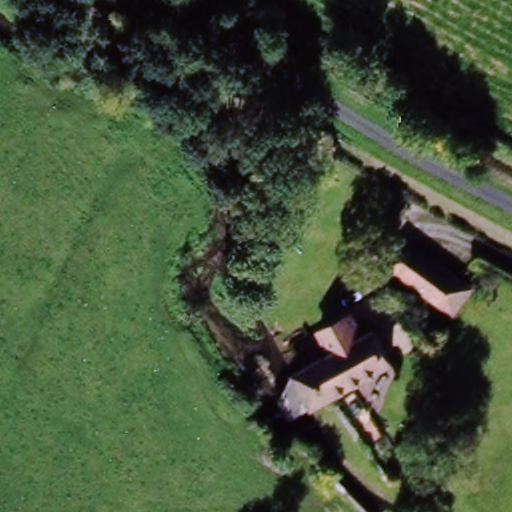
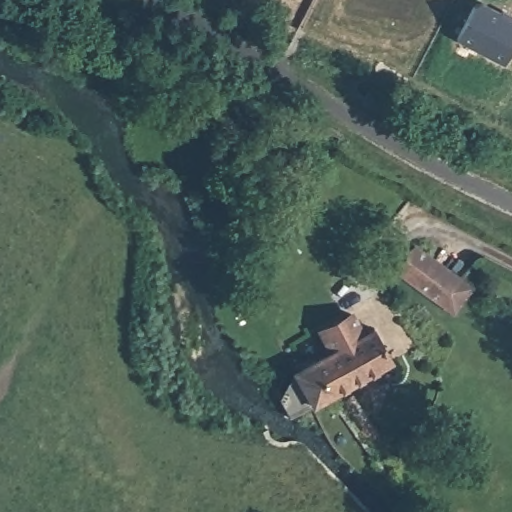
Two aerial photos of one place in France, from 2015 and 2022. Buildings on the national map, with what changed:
new [(475,2),(480,0),(482,0),(510,15),(512,12),(512,47),(506,60),(458,35),(475,2)]
unchanged [(454,309),(441,300),(414,281),(397,270),(401,264),(413,245),(431,258),(436,262),(449,270),(457,276),(470,285),(454,309)]
unchanged [(331,395),(288,421),(280,408),(304,393),(294,375),(312,365),(332,353),(321,334),(344,320),(354,314),(366,333),(377,326),(395,357),(331,395)]

